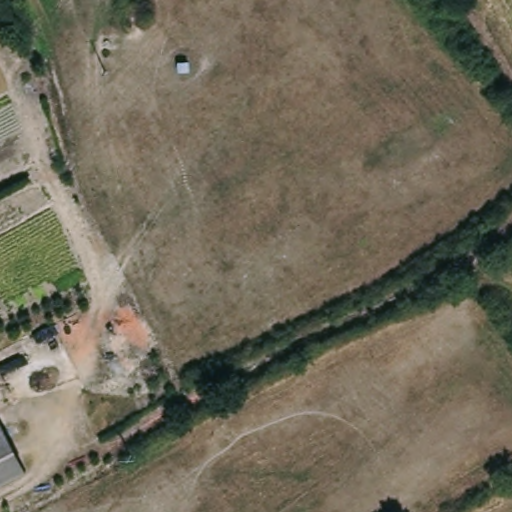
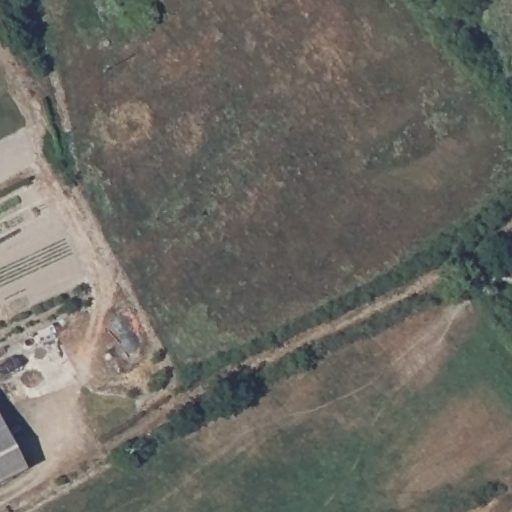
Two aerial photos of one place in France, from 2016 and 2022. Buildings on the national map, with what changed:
unchanged [(0,422),(26,473),(2,484),(0,485),(0,422)]

